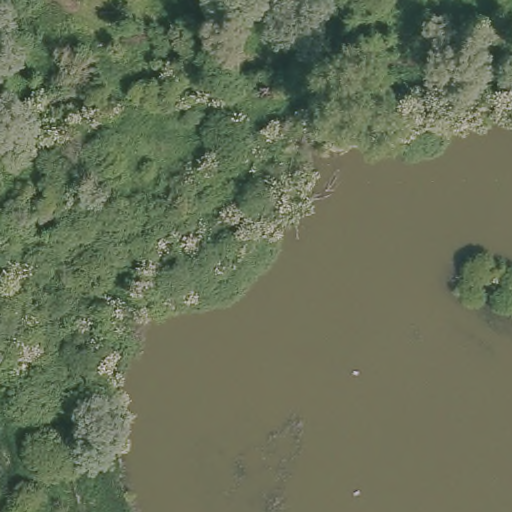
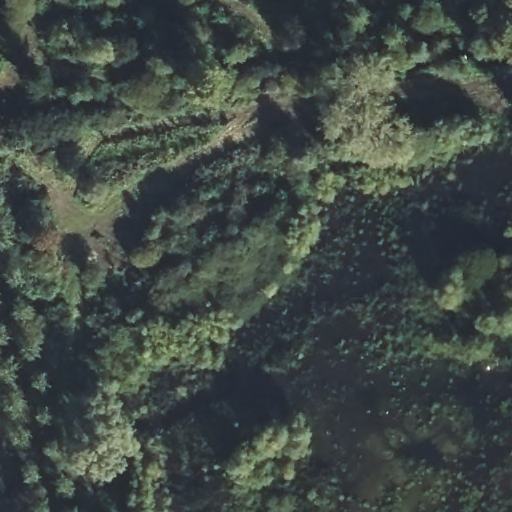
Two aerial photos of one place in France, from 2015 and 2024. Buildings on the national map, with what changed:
[]

